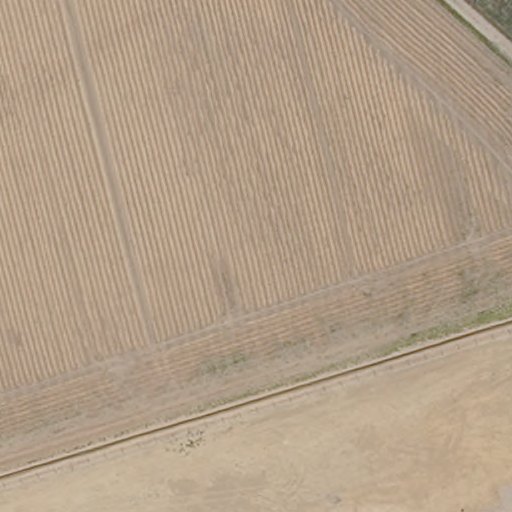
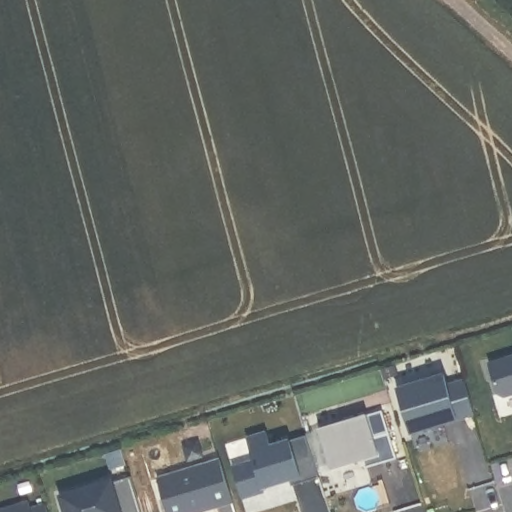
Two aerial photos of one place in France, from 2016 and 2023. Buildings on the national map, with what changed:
new [(512,395),(504,398),(499,395),(490,364),(512,358),(512,395)]
new [(445,375),(448,386),(465,381),(475,415),(411,434),(397,390),(445,375)]
new [(367,416),(373,437),(389,433),(397,459),(366,468),(363,461),(332,470),(320,430),(367,416)]
new [(255,462),(248,439),(267,433),(271,446),(307,436),(319,478),(292,487),(290,480),(264,488),(265,491),(243,499),(233,469),(255,462)]
new [(233,503),(205,512),(168,512),(158,480),(220,461),(233,503)]
new [(111,483),(131,477),(142,512),(65,512),(61,498),(111,482),(111,483)]
new [(30,510),(45,505),(48,512),(0,512),(28,503),(30,510)]

